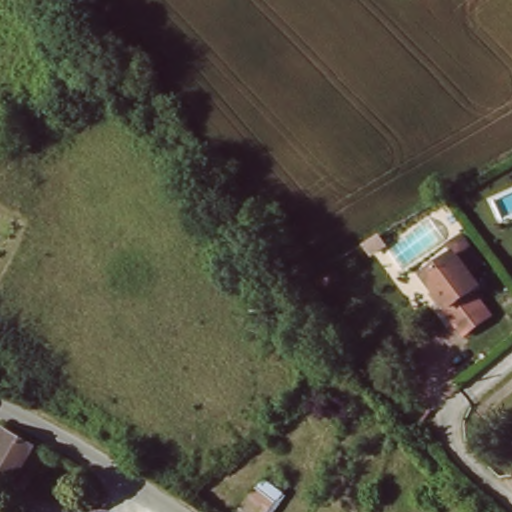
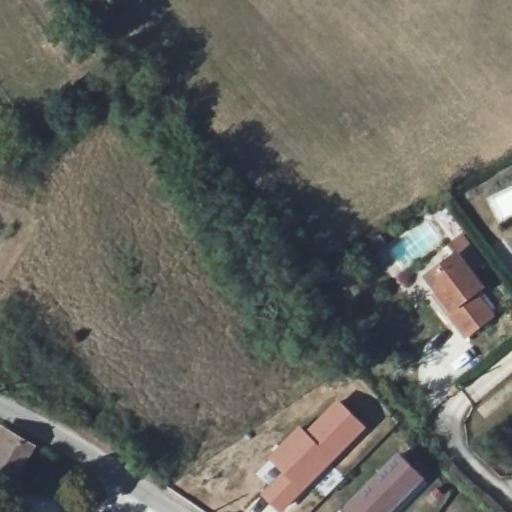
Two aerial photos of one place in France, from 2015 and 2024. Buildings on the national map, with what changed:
unchanged [(470,298),(487,320),(452,345),(435,323),(442,317),(418,286),(452,261),(441,248),(448,244),(457,239),(481,272),(475,277),(468,282),(477,292),(470,298)]
new [(287,472),(273,458),(300,431),(307,437),(341,404),(364,427),(283,510),(268,494),(287,472)]
unchanged [(37,492),(0,473),(0,426),(1,425),(55,457),(37,492)]
new [(400,452),(425,478),(392,512),(345,512),(342,510),(400,452)]
demolished [(296,490),(279,512),(232,512),(263,483),(296,490)]

